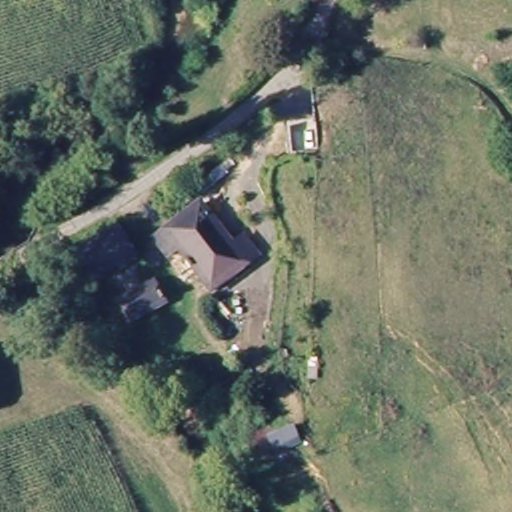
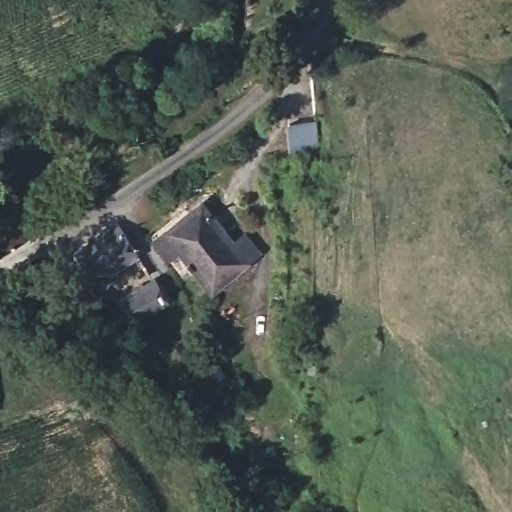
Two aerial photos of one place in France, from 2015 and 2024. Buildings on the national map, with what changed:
unchanged [(206,206),(237,248),(251,237),(266,256),(219,293),(187,255),(177,263),(175,265),(160,244),(162,242),(171,235),(206,206)]
unchanged [(134,262),(93,286),(74,251),(117,228),(134,262)]
unchanged [(167,300),(125,329),(117,320),(126,313),(118,303),(154,279),(167,300)]
unchanged [(313,458),(289,473),(267,438),(292,425),(313,458)]

